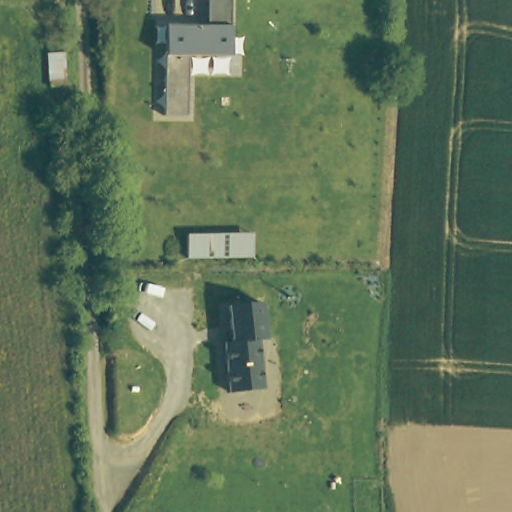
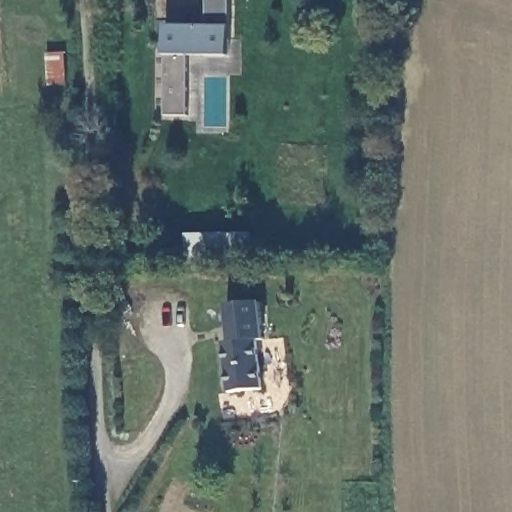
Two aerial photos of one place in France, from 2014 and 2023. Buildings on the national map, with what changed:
unchanged [(201,29),(203,0),(226,0),(223,61),(181,59),(180,121),(155,119),(160,26),(201,29)]
unchanged [(187,233),(253,233),(252,258),(186,259),(187,233)]
unchanged [(225,343),(232,342),(228,307),(262,304),(266,340),(257,341),(263,389),(228,393),(225,343)]

